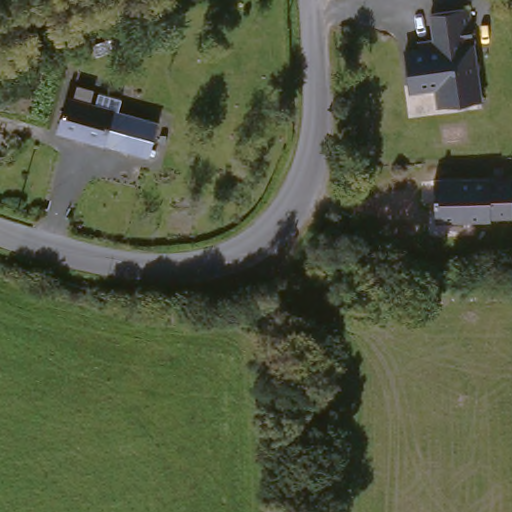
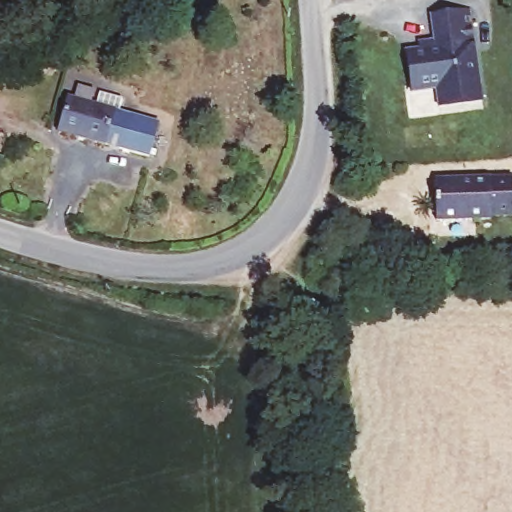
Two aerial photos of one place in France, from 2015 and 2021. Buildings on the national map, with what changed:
unchanged [(471,8),(484,102),(440,107),(438,86),(416,89),(411,85),(406,51),(438,48),(433,12),(471,8)]
unchanged [(118,55),(121,37),(142,42),(137,60),(118,55)]
unchanged [(71,81),(96,85),(93,99),(120,105),(141,110),(158,114),(151,154),(60,135),(71,81)]
unchanged [(512,180),(512,219),(489,218),(489,221),(434,219),(434,178),(512,180)]

